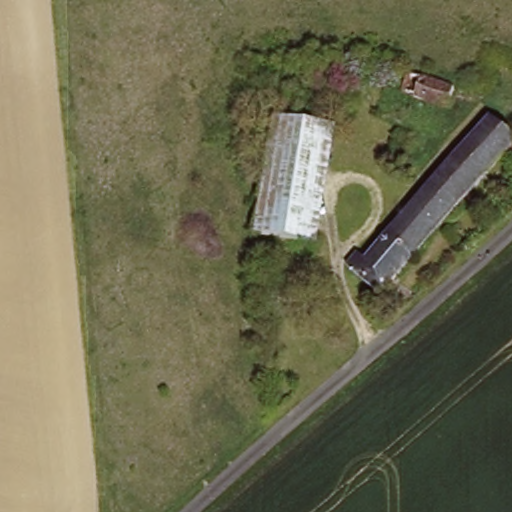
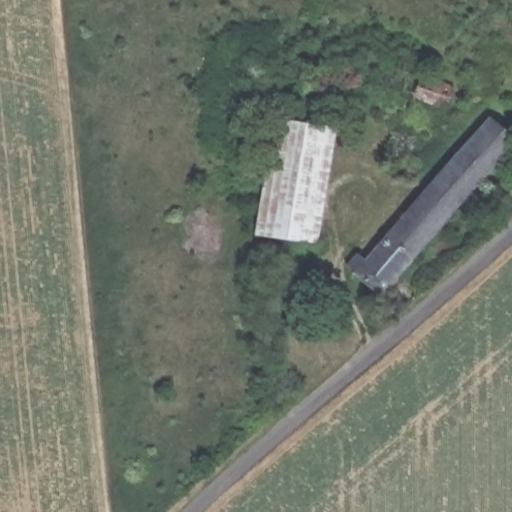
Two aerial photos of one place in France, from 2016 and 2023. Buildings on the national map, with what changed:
unchanged [(488,98),(486,104),(467,98),(462,112),(411,95),(417,75),(488,98)]
unchanged [(498,156),(446,207),(373,293),(353,268),(418,190),(491,116),(512,140),(512,172),(498,156)]
unchanged [(334,130),(314,246),(251,235),(272,119),(334,130)]

